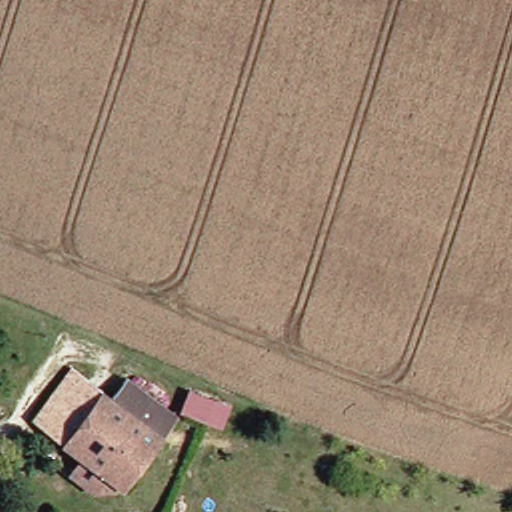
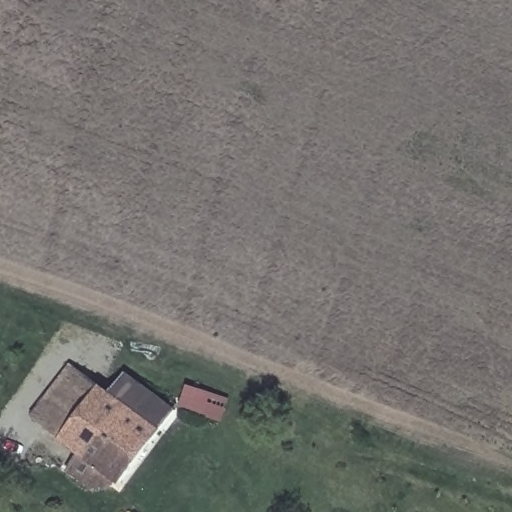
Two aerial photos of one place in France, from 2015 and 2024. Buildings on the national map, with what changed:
unchanged [(41,416),(78,366),(121,397),(138,377),(153,388),(181,408),(165,429),(126,479),(41,416)]

